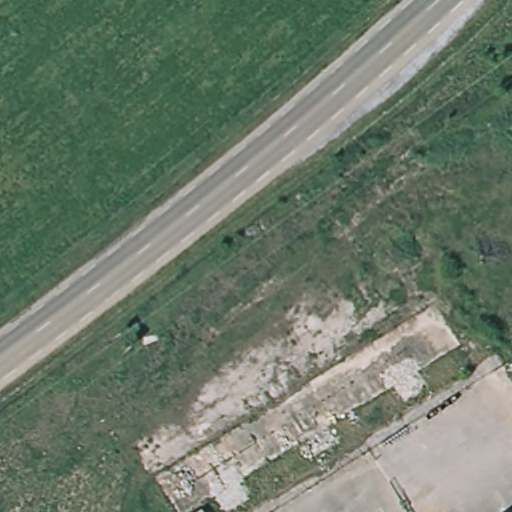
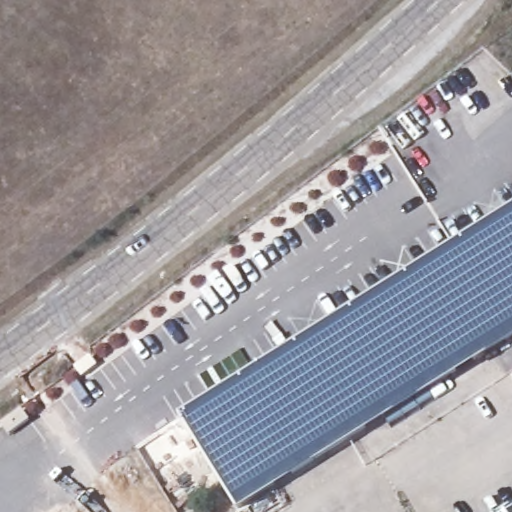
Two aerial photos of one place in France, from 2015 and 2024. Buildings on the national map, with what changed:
new [(512,215),(512,338),(238,511),(182,422),(512,215)]

